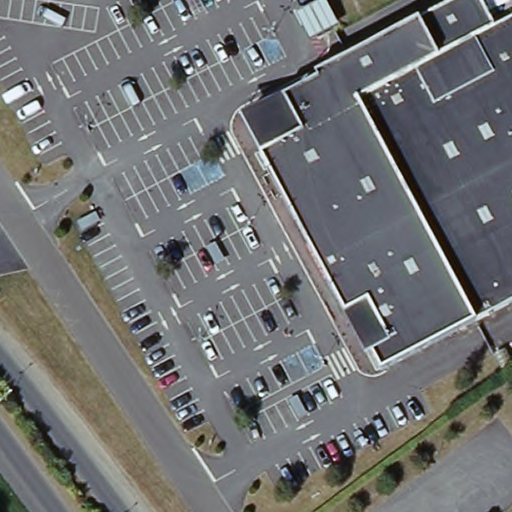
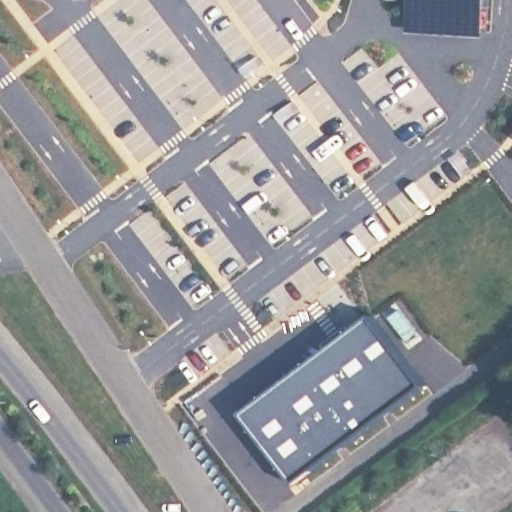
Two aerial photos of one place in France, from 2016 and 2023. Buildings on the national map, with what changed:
demolished [(401,177),(480,326),(387,376),(355,317),(350,319),(265,161),(269,159),(252,127),(290,107),(287,103),(322,85),(320,80),(352,62),(467,0),(482,0),(500,32),(512,25),(512,27),(467,51),(363,106),(401,177)]
new [(403,30),(404,0),(486,0),(485,36),(403,30)]
demolished [(401,177),(363,106),(467,51),(512,27),(512,308),(480,326),(401,177)]
new [(445,388),(286,502),(230,415),(385,305),(445,388)]

